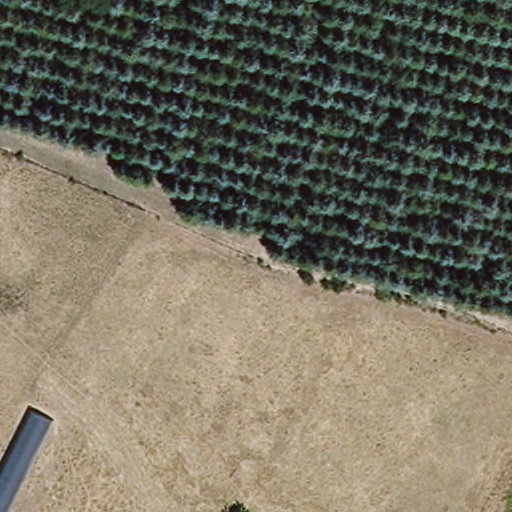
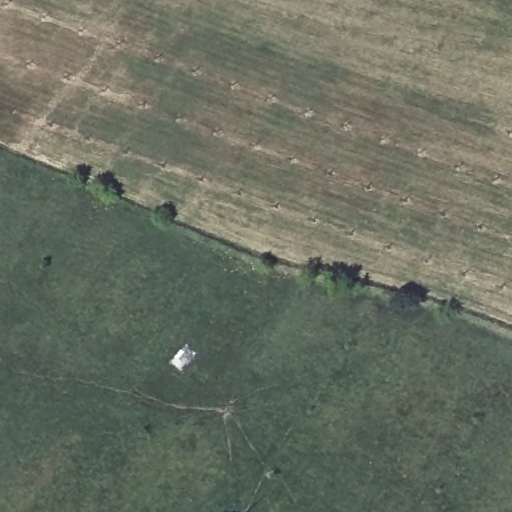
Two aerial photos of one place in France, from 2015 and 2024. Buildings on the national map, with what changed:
demolished [(56,426),(7,512),(0,512),(0,467),(32,411),(56,426)]

